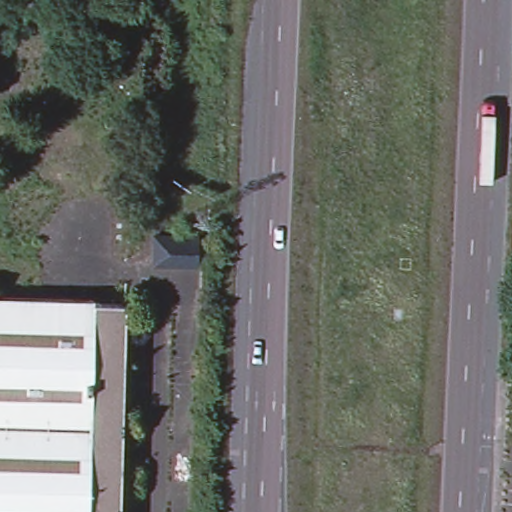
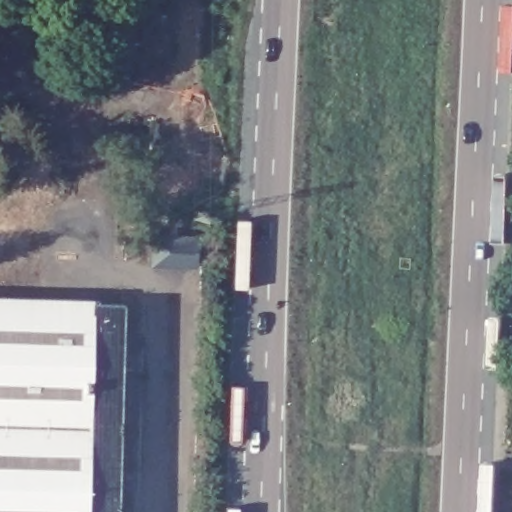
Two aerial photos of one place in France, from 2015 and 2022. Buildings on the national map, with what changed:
unchanged [(0,299),(91,301),(91,306),(115,307),(124,308),(122,355),(119,512),(0,512),(0,299)]

